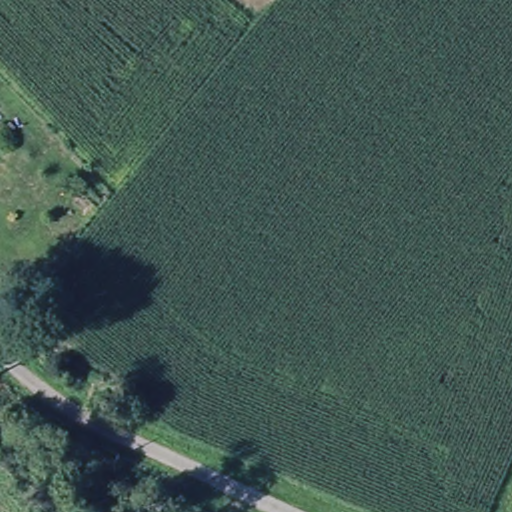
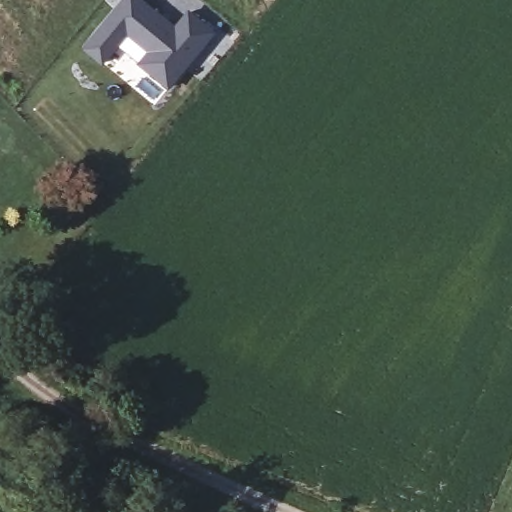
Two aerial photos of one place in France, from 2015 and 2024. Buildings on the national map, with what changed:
new [(122,0),(145,0),(176,24),(190,7),(224,27),(170,90),(138,61),(145,52),(129,39),(104,65),(82,49),(122,0)]

